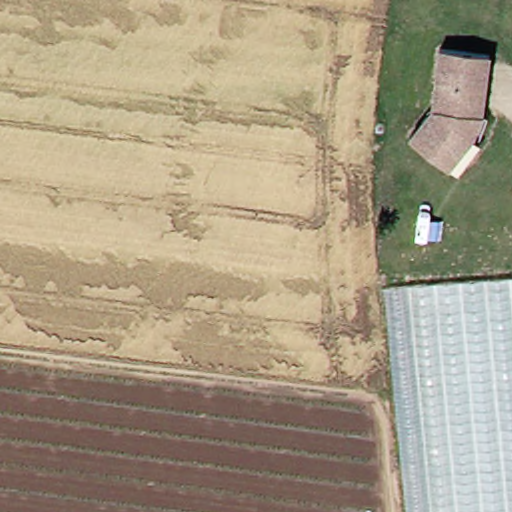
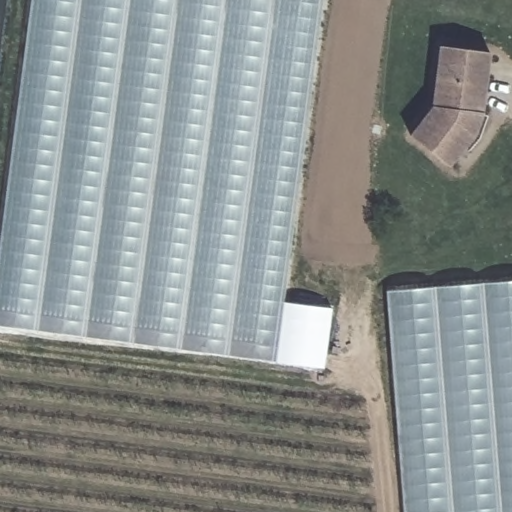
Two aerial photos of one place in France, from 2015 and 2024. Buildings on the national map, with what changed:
new [(280,301),(325,307),(317,367),(0,324),(0,245),(33,0),(320,0),(280,301)]
unchanged [(431,103),(438,45),(492,51),(484,113),(453,166),(411,141),(431,103)]
unchanged [(409,512),(386,286),(512,272),(512,512),(409,512)]

